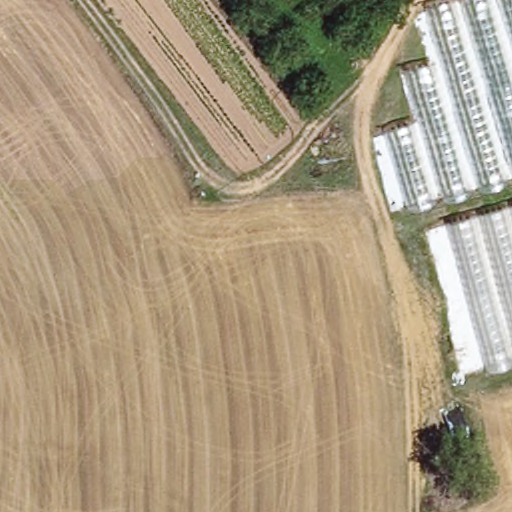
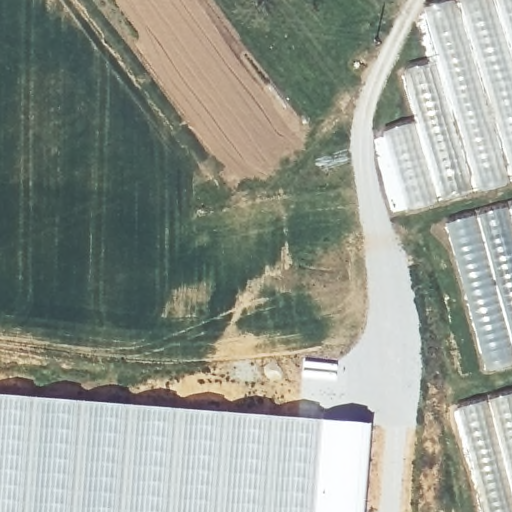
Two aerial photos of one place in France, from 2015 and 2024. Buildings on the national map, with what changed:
unchanged [(444,203),(404,212),(385,130),(415,124),(405,69),(437,61),(427,7),(453,0),(512,0),(512,364),(486,371),(444,203)]
new [(374,423),(366,512),(0,512),(0,393),(374,423)]
new [(512,442),(512,444),(511,443),(512,442)]
new [(512,447),(512,462),(505,452),(512,447)]

